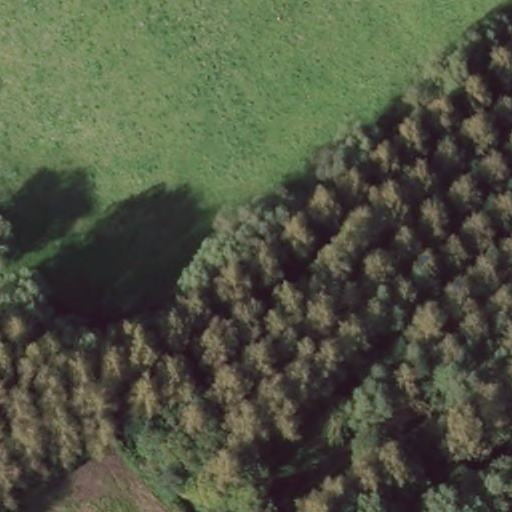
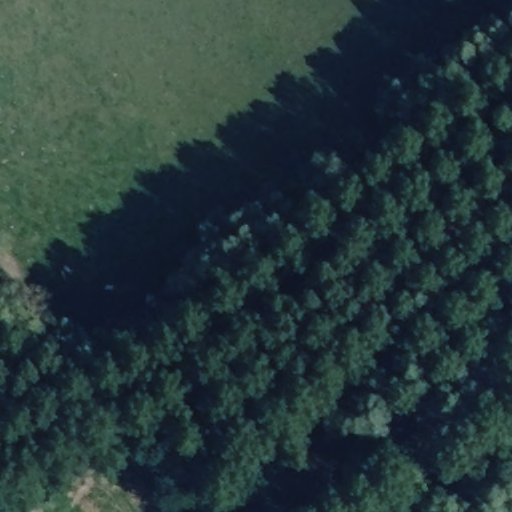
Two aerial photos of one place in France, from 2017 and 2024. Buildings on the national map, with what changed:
unchanged [(383,447),(448,415),(462,440),(397,472),(383,447)]

